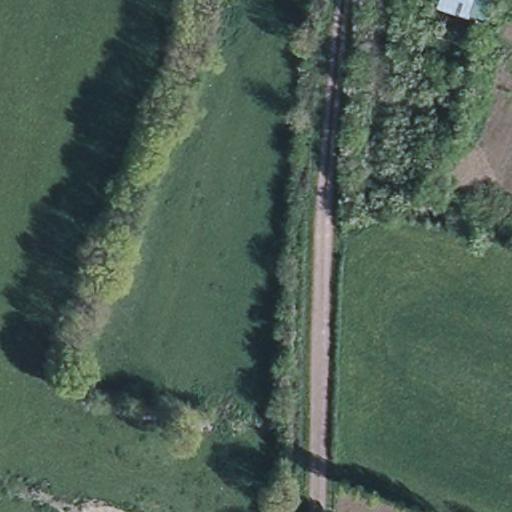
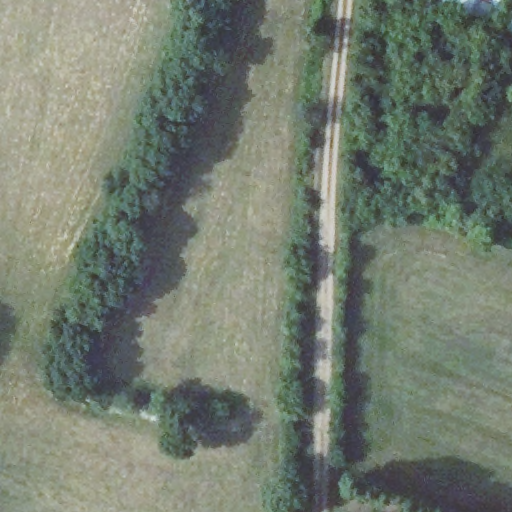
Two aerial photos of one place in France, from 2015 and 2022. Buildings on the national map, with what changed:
unchanged [(437,9),(440,0),(494,0),(487,22),(437,9)]

